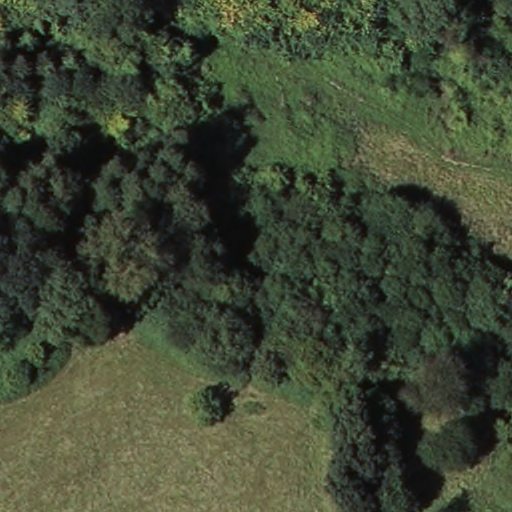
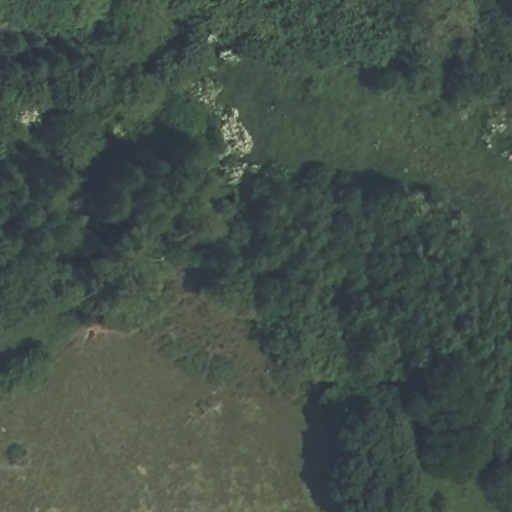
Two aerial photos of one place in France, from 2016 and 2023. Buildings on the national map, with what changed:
unchanged [(160,169),(163,182),(138,187),(135,172),(160,169)]

